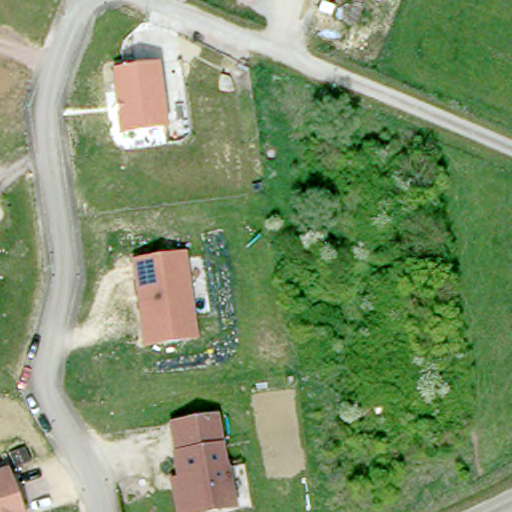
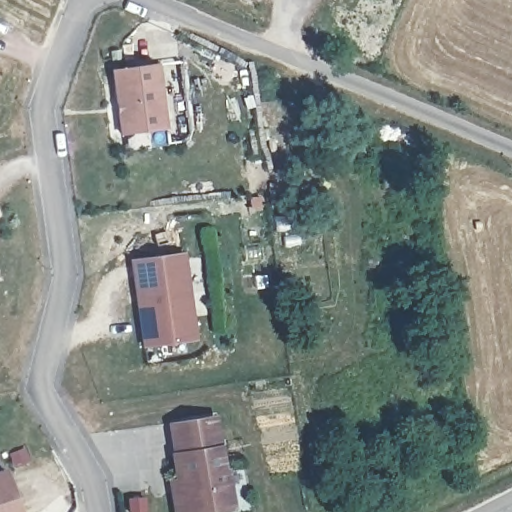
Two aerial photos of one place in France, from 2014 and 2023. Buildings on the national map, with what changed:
unchanged [(160,59),(165,129),(119,134),(114,67),(160,59)]
unchanged [(185,247),(197,339),(142,345),(131,257),(185,247)]
unchanged [(172,478),(180,477),(175,454),(177,453),(172,424),(216,416),(235,507),(206,512),(178,512),(172,478)]
unchanged [(3,466),(18,512),(0,512),(0,467),(3,466)]

